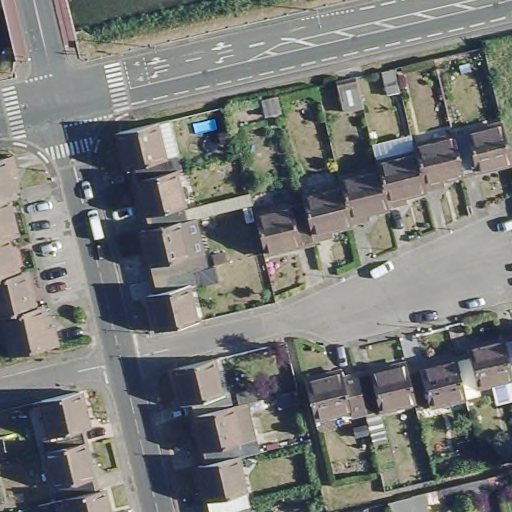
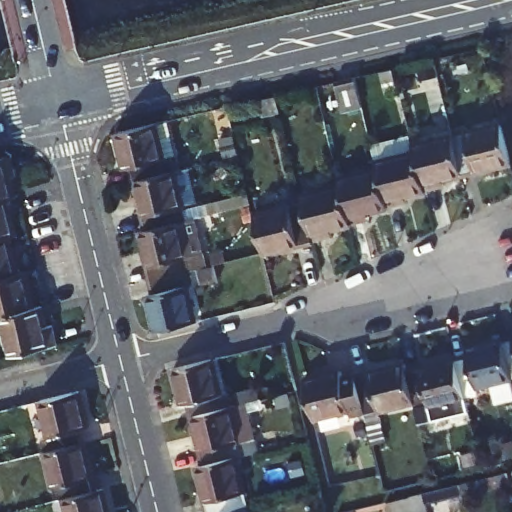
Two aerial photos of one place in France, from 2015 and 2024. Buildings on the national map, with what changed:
unchanged [(393,65),(399,89),(386,92),(381,67),(393,65)]
unchanged [(364,104),(344,108),(337,79),(357,74),(364,104)]
unchanged [(284,112),(266,116),(235,123),(230,105),(262,97),(279,93),(284,112)]
unchanged [(182,169),(176,171),(138,180),(135,167),(127,169),(119,132),(170,120),(182,169)]
unchanged [(502,127),(510,166),(462,177),(454,139),(502,127)]
unchanged [(415,149),(454,139),(462,177),(442,182),(444,189),(425,193),(416,155),(415,149)]
unchanged [(377,165),(416,155),(425,193),(405,198),(407,206),(387,211),(379,173),(377,165)]
unchanged [(5,181),(10,201),(4,202),(0,203),(0,161),(7,159),(12,179),(5,181)]
unchanged [(176,171),(187,219),(180,221),(150,229),(138,180),(176,171)]
unchanged [(341,182),(379,173),(387,211),(369,215),(370,222),(352,227),(342,189),(341,182)]
unchanged [(305,206),(303,199),(342,189),(352,227),(330,232),(332,240),(314,244),(305,206)]
unchanged [(5,241),(0,242),(0,203),(4,202),(12,239),(5,241)]
unchanged [(255,217),(305,206),(314,244),(265,256),(255,217)]
unchanged [(180,221),(191,269),(153,278),(142,231),(150,229),(180,221)]
unchanged [(0,280),(0,242),(5,241),(14,277),(0,280)]
unchanged [(214,263),(218,281),(202,284),(199,267),(214,263)]
unchanged [(191,269),(195,283),(188,286),(197,321),(159,330),(157,330),(150,293),(157,292),(153,278),(191,269)]
unchanged [(30,312),(6,317),(0,319),(0,280),(14,277),(21,275),(30,312)]
unchanged [(15,357),(6,317),(30,312),(37,310),(42,331),(49,329),(54,347),(15,357)]
unchanged [(512,340),(512,380),(511,381),(502,342),(512,340)]
unchanged [(468,358),(467,351),(502,342),(511,381),(475,389),(477,397),(464,400),(455,362),(468,358)]
unchanged [(221,356),(232,405),(195,413),(192,400),(184,401),(177,373),(176,367),(221,356)]
unchanged [(455,362),(464,400),(415,412),(413,404),(405,374),(455,362)]
unchanged [(404,367),(405,374),(413,404),(377,412),(385,443),(372,447),(365,416),(355,378),(404,367)]
unchanged [(340,374),(342,382),(355,378),(365,416),(352,418),(350,412),(315,421),(305,382),(340,374)]
unchanged [(195,413),(232,405),(242,402),(239,392),(260,387),(262,397),(243,402),(255,451),(235,456),(207,462),(206,461),(195,413)]
unchanged [(75,390),(84,427),(77,429),(80,441),(41,451),(39,438),(47,437),(37,398),(75,390)]
unchanged [(80,441),(91,490),(61,497),(53,500),(41,451),(80,441)]
unchanged [(247,505),(215,512),(209,512),(205,497),(199,465),(207,462),(235,456),(247,505)]
unchanged [(98,489),(104,512),(65,512),(61,497),(91,490),(98,489)]
unchanged [(215,512),(247,505),(249,512),(215,512)]

